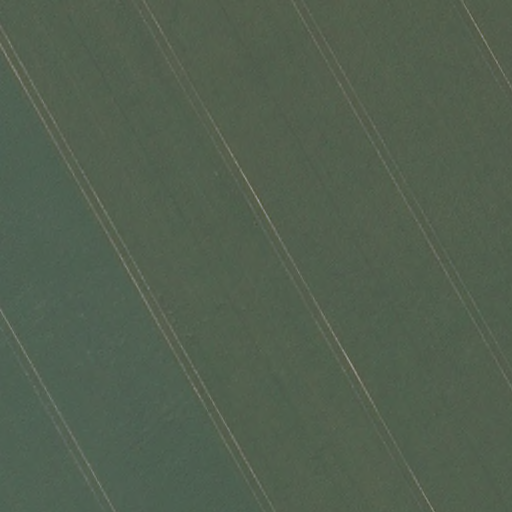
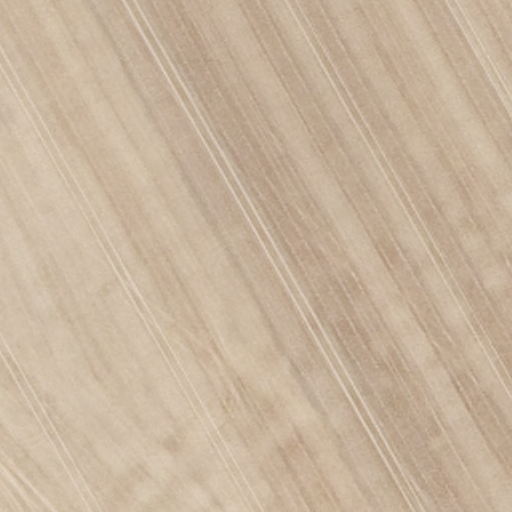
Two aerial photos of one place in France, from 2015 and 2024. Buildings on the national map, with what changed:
[]

